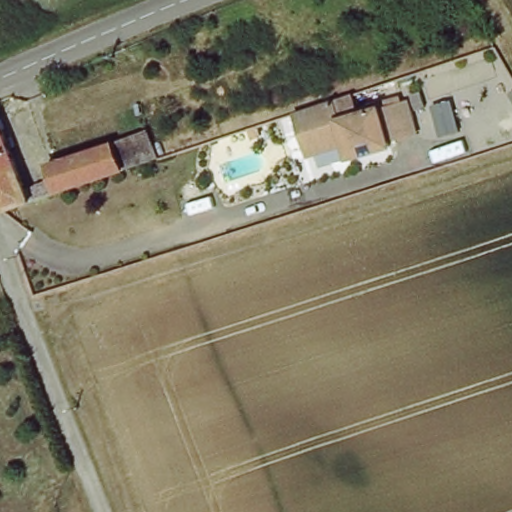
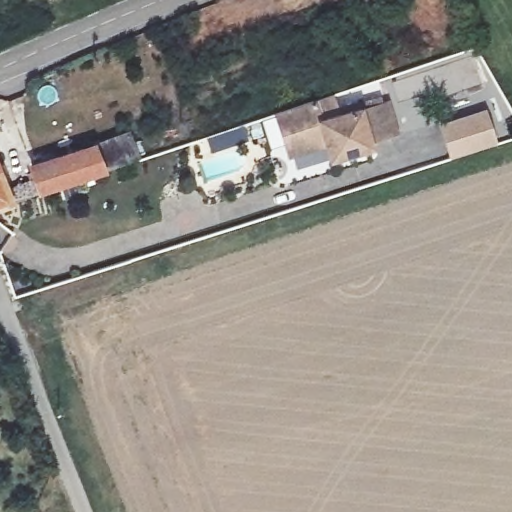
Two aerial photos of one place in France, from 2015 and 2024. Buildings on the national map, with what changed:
unchanged [(287,148),(276,114),(333,96),(337,110),(380,97),(382,104),(387,102),(396,132),(370,141),(371,146),(331,159),(328,146),(290,158),(287,148)]
new [(450,159),(439,123),(486,107),(498,144),(450,159)]
unchanged [(9,185),(37,176),(35,167),(136,135),(143,160),(103,172),(0,204),(0,166),(9,185)]

